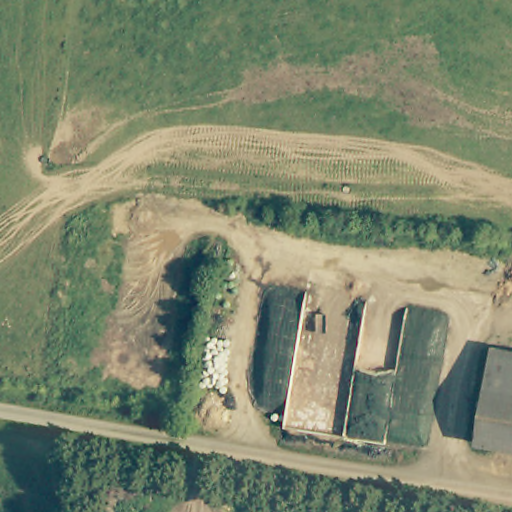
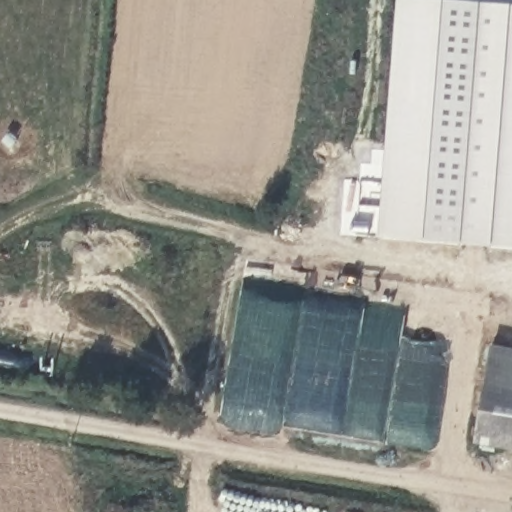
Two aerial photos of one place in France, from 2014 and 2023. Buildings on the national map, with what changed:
new [(397,0),(435,0),(512,6),(512,249),(377,237),(397,0)]
unchanged [(512,450),(476,444),(493,348),(512,351),(512,450)]

